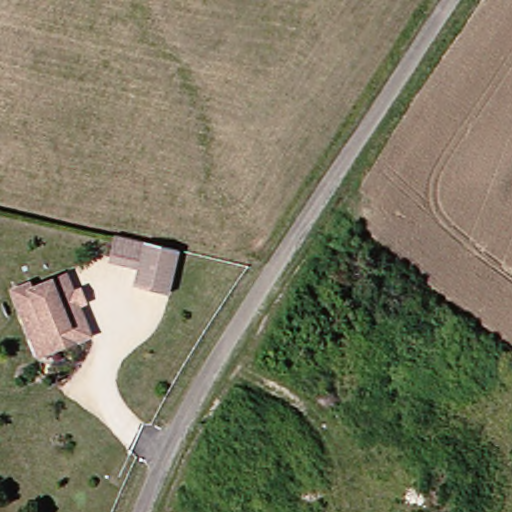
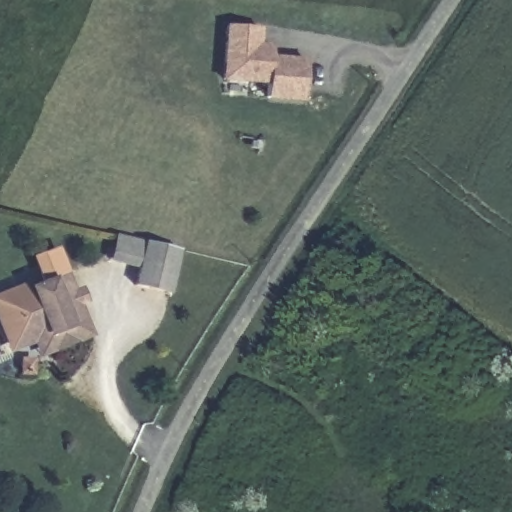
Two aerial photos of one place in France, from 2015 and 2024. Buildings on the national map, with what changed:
new [(256,29),(255,46),(269,47),(268,53),(268,59),(303,62),(299,101),(263,99),(264,84),(220,80),(224,25),(256,29)]
unchanged [(135,285),(140,263),(110,258),(116,232),(146,239),(179,247),(169,290),(135,285)]
unchanged [(38,350),(33,335),(11,286),(28,279),(31,283),(64,270),(81,315),(87,330),(38,350)]
unchanged [(33,335),(36,343),(9,353),(0,332),(0,294),(13,290),(33,335)]

